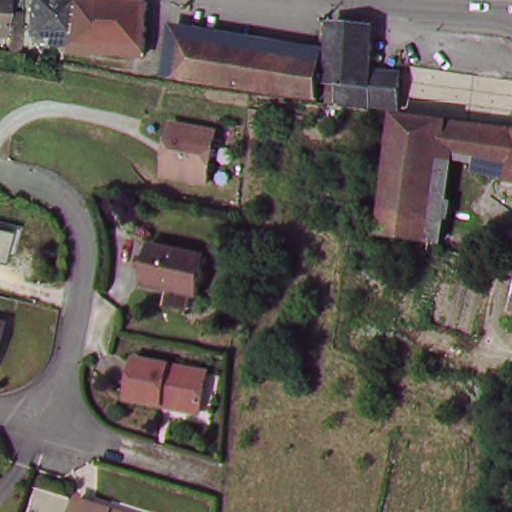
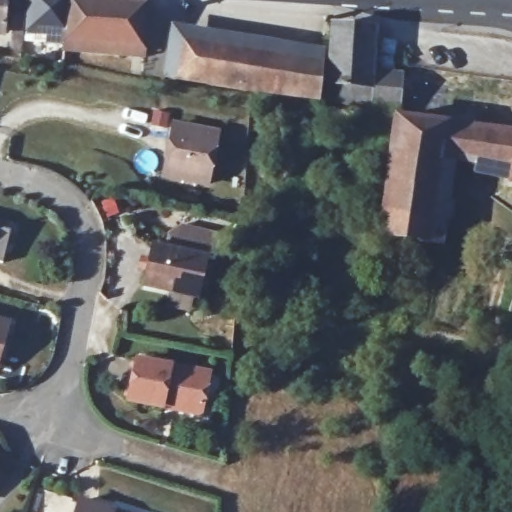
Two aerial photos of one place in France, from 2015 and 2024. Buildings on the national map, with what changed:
unchanged [(0,33),(0,0),(9,0),(6,34),(0,33)]
unchanged [(32,0),(68,0),(64,32),(30,30),(32,0)]
unchanged [(63,43),(64,32),(68,0),(150,0),(144,50),(63,43)]
unchanged [(375,26),(369,76),(399,80),(395,108),(326,100),(332,20),(375,26)]
unchanged [(172,32),(317,52),(312,99),(168,77),(172,32)]
unchanged [(375,234),(395,117),(512,136),(512,178),(505,176),(507,167),(435,154),(430,202),(438,202),(434,247),(375,234)]
unchanged [(207,184),(162,174),(172,126),(216,133),(207,184)]
unchanged [(150,246),(205,261),(192,299),(139,283),(150,246)]
unchanged [(511,310),(512,305),(512,310),(511,310)]
unchanged [(0,348),(0,320),(7,322),(0,348)]
unchanged [(157,406),(129,399),(135,364),(206,377),(201,403),(199,415),(157,406)]
unchanged [(79,496),(113,507),(127,512),(73,512),(79,496)]

